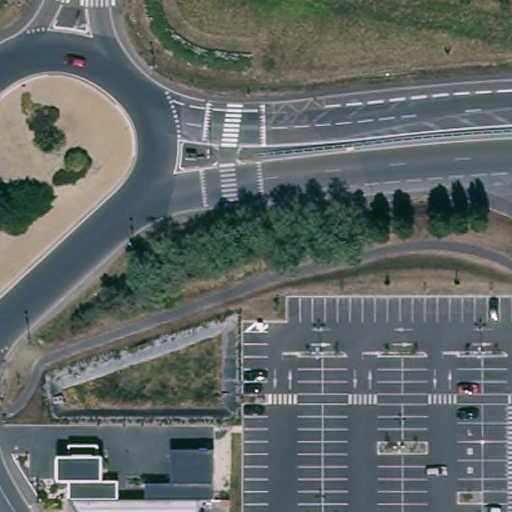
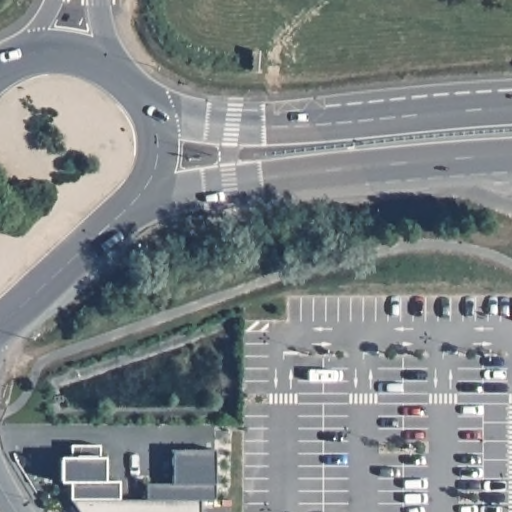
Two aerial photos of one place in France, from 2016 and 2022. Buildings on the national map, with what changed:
unchanged [(74,498),(73,481),(59,479),(60,456),(68,456),(69,441),(102,441),(105,480),(117,480),(119,498),(74,498)]
unchanged [(147,486),(171,484),(171,448),(216,447),(217,497),(200,497),(148,497),(147,486)]
unchanged [(200,512),(83,512),(74,498),(200,497),(200,512)]

